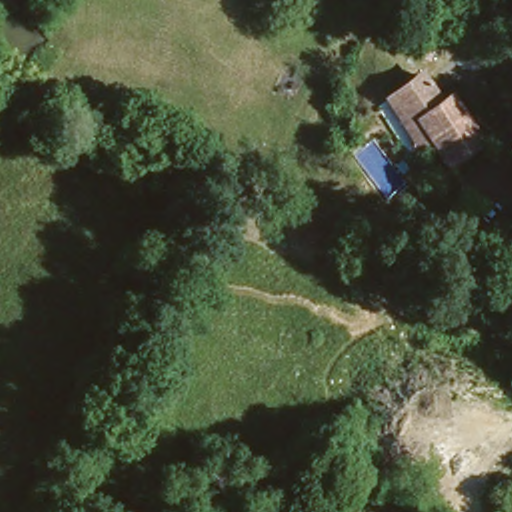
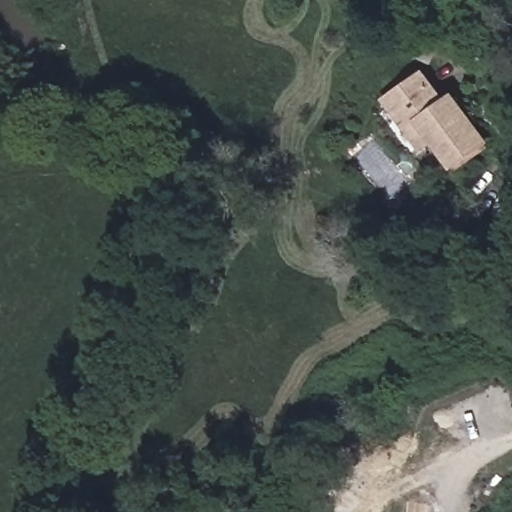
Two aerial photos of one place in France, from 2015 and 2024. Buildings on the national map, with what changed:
unchanged [(456,97),(485,142),(451,166),(434,138),(424,145),(391,95),(428,71),(448,101),(456,97)]

